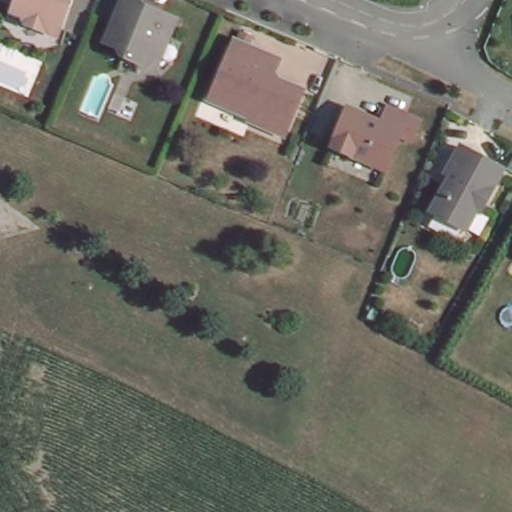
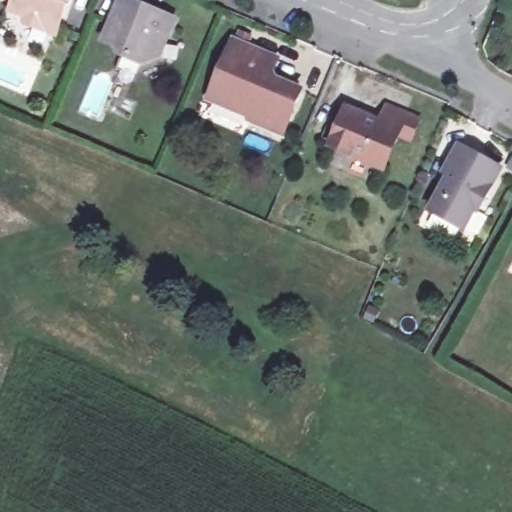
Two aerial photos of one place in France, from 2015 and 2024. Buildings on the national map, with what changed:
unchanged [(50,22),(42,27),(27,23),(27,22),(22,12),(14,10),(16,0),(68,0),(67,3),(60,25),(50,22)]
unchanged [(155,57),(147,53),(144,61),(127,54),(129,50),(107,41),(124,0),(142,0),(141,5),(175,19),(169,35),(162,54),(155,57)]
unchanged [(277,85),(282,84),(306,96),(285,139),(248,124),(244,122),(245,119),(214,105),(233,59),(239,46),(282,64),(277,77),(275,81),(277,85)]
unchanged [(410,135),(395,132),(385,164),(374,162),(369,168),(327,151),(341,110),(379,124),(385,104),(414,114),(410,135)]
unchanged [(444,181),(439,178),(454,152),(495,175),(472,218),(469,216),(459,235),(424,217),(444,181)]

